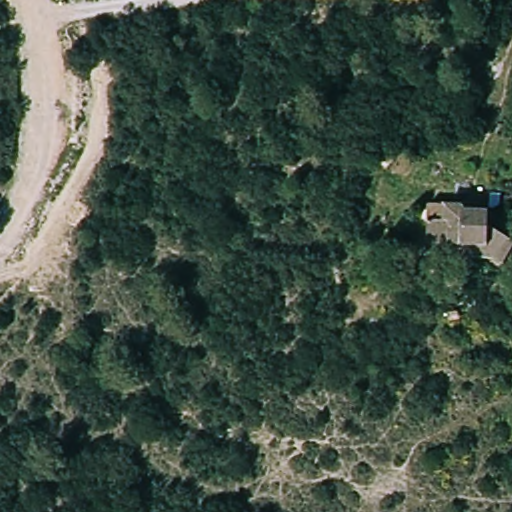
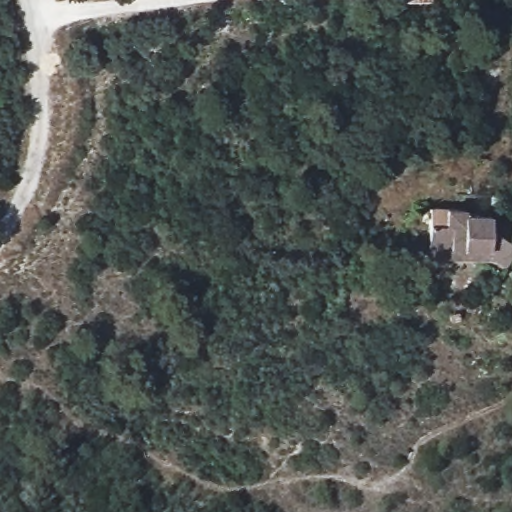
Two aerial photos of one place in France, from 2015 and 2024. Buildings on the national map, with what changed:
unchanged [(495,281),(477,249),(430,246),(430,222),(445,224),(446,209),(468,210),(470,217),(492,218),(512,254),(512,272),(495,281)]

